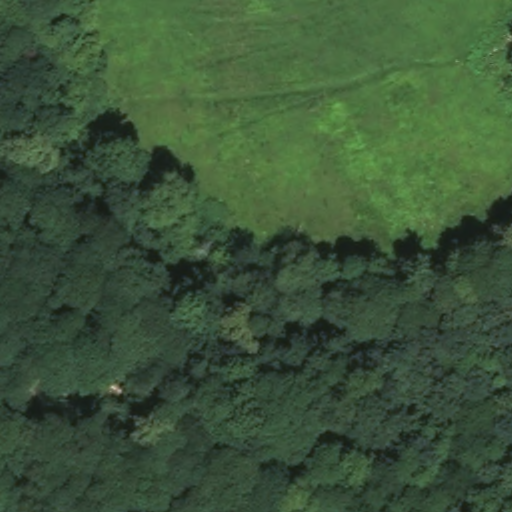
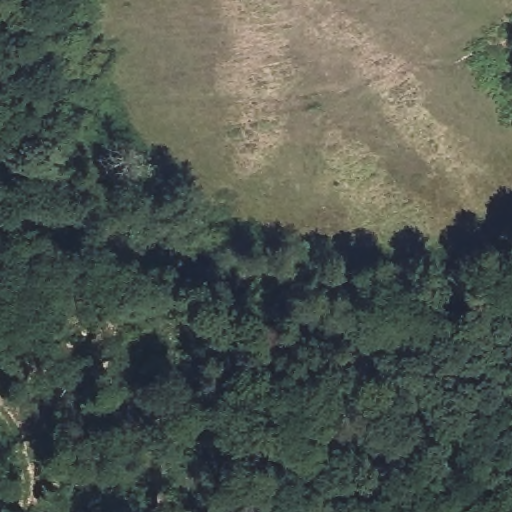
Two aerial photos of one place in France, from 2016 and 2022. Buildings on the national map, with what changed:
[]

